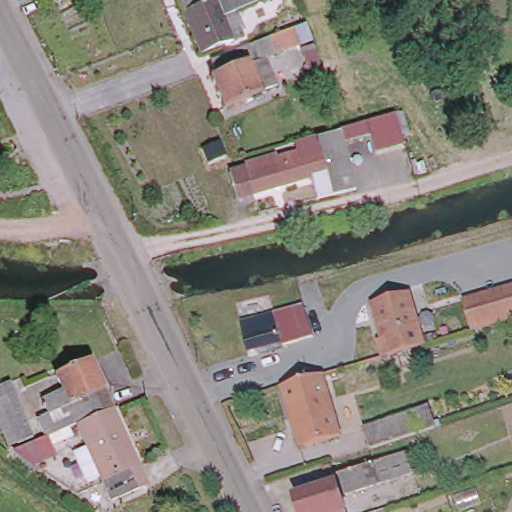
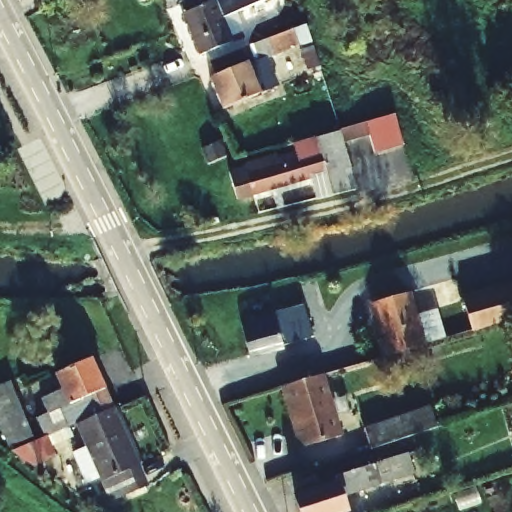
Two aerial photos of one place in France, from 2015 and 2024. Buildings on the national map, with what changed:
unchanged [(239,23),(243,36),(199,54),(182,12),(202,5),(204,14),(239,0),(277,0),(280,8),(239,23)]
unchanged [(298,45),(265,58),(276,87),(219,107),(207,75),(215,73),(209,59),(293,27),(298,45)]
unchanged [(396,114),(403,141),(373,149),(370,137),(343,143),(340,129),(396,114)]
unchanged [(340,129),(343,143),(356,185),(324,192),(318,173),(238,194),(231,167),(249,163),(250,168),(300,155),(296,137),(338,125),(340,129)]
unchanged [(465,298),(512,285),(512,320),(473,332),(465,298)]
unchanged [(427,343),(423,344),(385,355),(379,338),(385,337),(375,299),(412,289),(427,343)]
unchanged [(317,336),(287,343),(288,347),(253,356),(245,325),(308,307),(317,336)]
unchanged [(100,477),(77,425),(80,424),(77,417),(57,374),(92,359),(110,401),(113,409),(128,443),(123,445),(132,462),(140,482),(108,496),(100,477)]
unchanged [(326,371),(342,432),(305,444),(287,383),(326,371)]
unchanged [(0,415),(0,385),(17,380),(37,435),(13,445),(0,415)]
unchanged [(52,446),(55,456),(28,465),(21,448),(45,436),(37,417),(47,413),(41,396),(63,388),(77,417),(62,430),(66,440),(52,446)]
unchanged [(373,448),(367,426),(417,412),(423,433),(373,448)]
unchanged [(416,470),(327,499),(330,512),(288,512),(283,497),(322,485),(320,480),(372,462),(378,461),(409,451),(416,470)]

